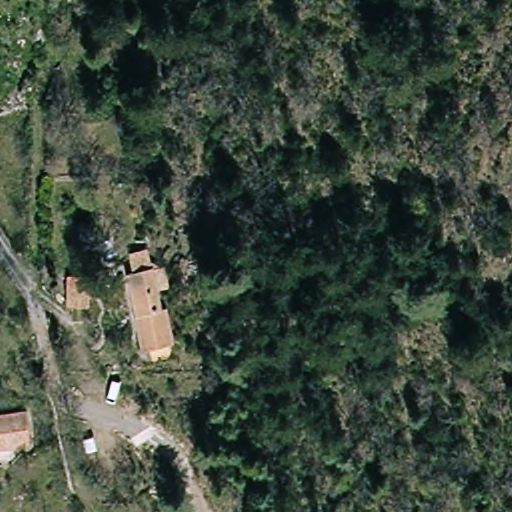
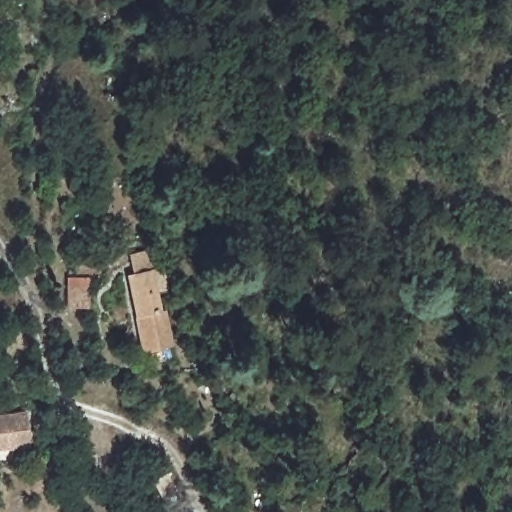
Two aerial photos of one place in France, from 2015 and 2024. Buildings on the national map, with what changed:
unchanged [(158,314),(170,313),(175,346),(140,352),(130,272),(137,271),(135,254),(155,252),(158,269),(175,267),(177,286),(160,288),(155,288),(158,314)]
unchanged [(88,270),(90,306),(67,307),(67,271),(88,270)]
unchanged [(32,439),(0,442),(0,410),(30,407),(32,439)]

